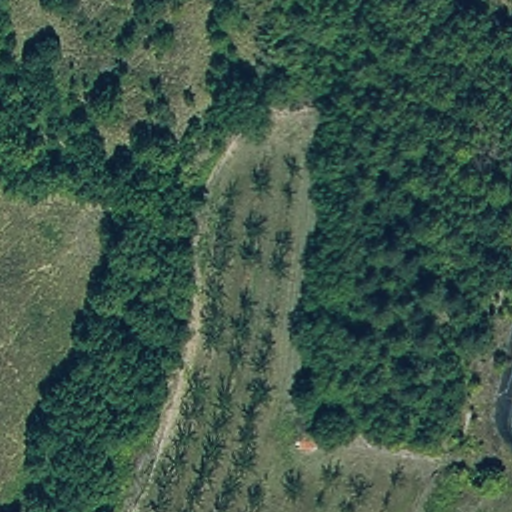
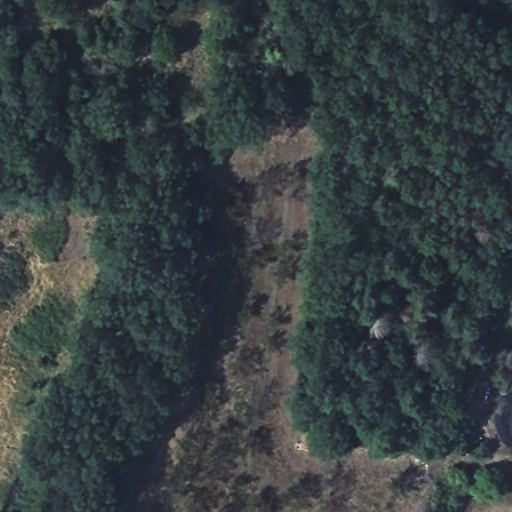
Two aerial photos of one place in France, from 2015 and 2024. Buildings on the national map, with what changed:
unchanged [(314,449),(295,445),(299,428),(319,430),(314,449)]

